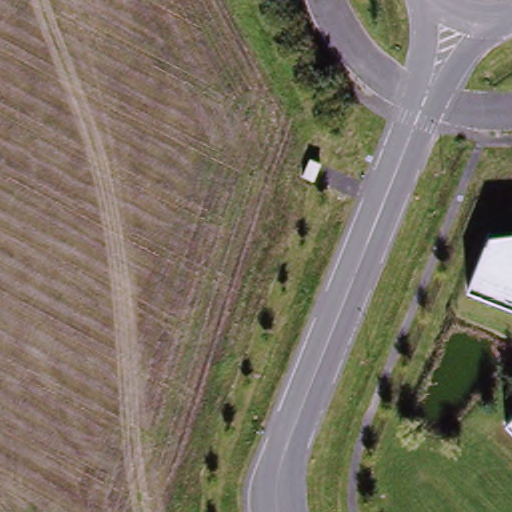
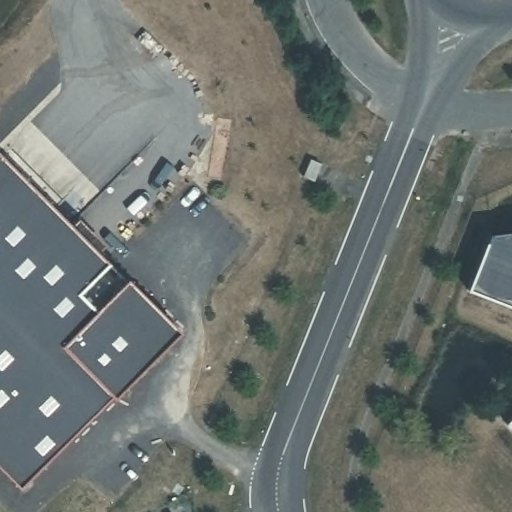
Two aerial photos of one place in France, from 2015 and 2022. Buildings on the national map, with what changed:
new [(19,488),(0,469),(0,155),(179,333),(19,488)]
unchanged [(467,290),(491,232),(512,230),(512,302),(467,290)]
unchanged [(510,423),(512,421),(512,426),(510,423)]

